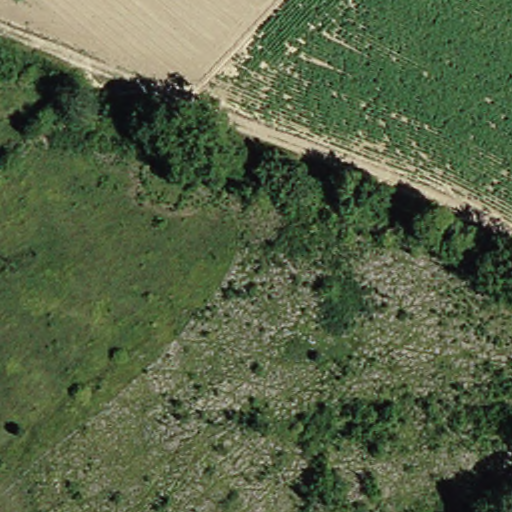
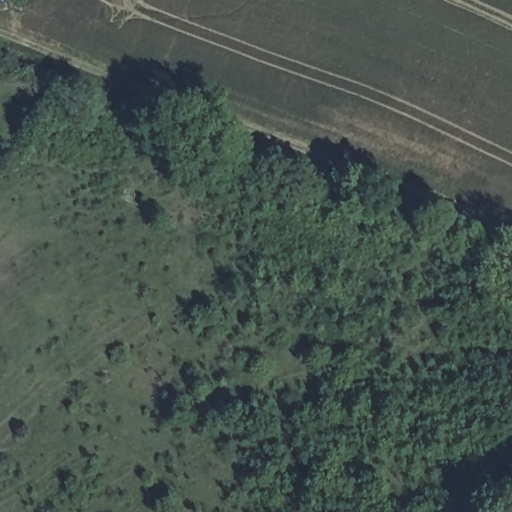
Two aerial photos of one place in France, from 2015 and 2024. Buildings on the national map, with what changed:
[]

